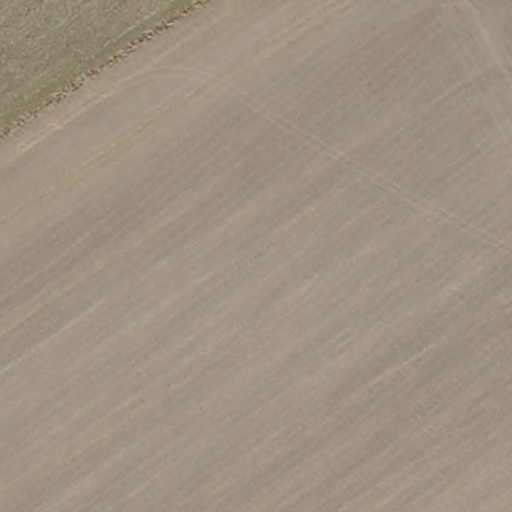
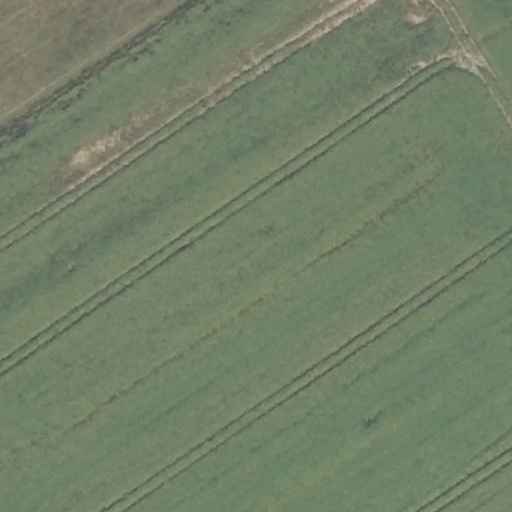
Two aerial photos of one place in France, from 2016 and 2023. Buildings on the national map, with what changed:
[]

